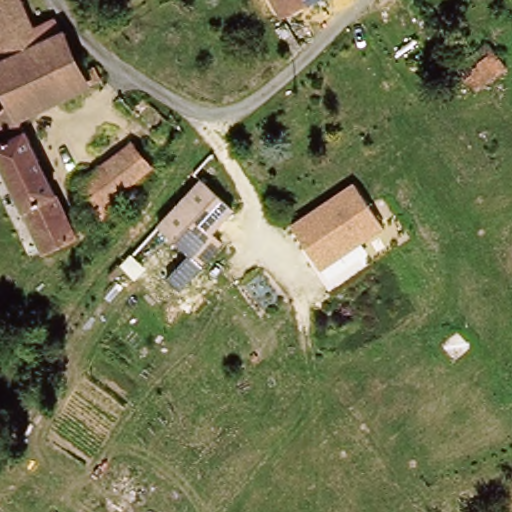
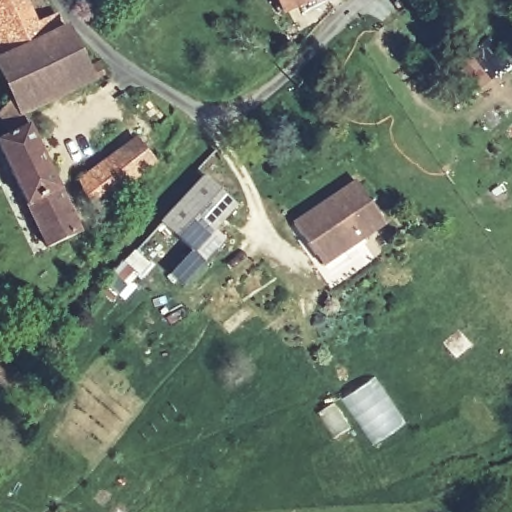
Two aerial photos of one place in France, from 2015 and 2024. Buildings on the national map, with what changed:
unchanged [(98,66),(106,63),(112,73),(65,98),(30,116),(45,148),(70,196),(92,237),(66,250),(7,141),(18,136),(5,117),(25,104),(2,62),(0,58),(0,0),(24,0),(33,25),(35,27),(55,16),(62,28),(65,27),(92,69),(98,66)]
unchanged [(283,13),(276,0),(307,0),(283,13)]
unchanged [(459,64),(491,43),(512,68),(478,92),(459,64)]
unchanged [(110,193),(117,203),(105,212),(85,184),(83,175),(92,168),(139,131),(147,142),(156,154),(110,193)]
unchanged [(225,232),(205,255),(182,288),(171,278),(189,250),(162,224),(203,172),(235,200),(215,223),(225,232)]
unchanged [(295,222),(357,182),(387,227),(325,268),(295,222)]
new [(382,392),(400,422),(395,423),(390,434),(380,441),(350,398),(363,390),(361,386),(371,382),(373,387),(382,392)]

